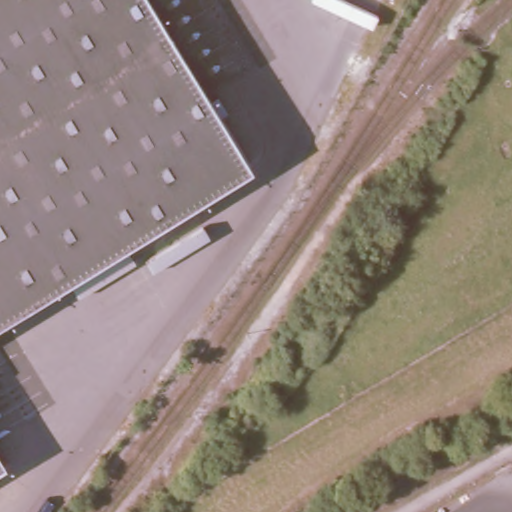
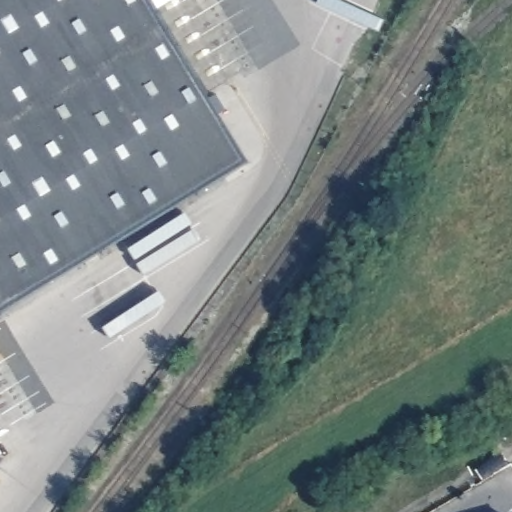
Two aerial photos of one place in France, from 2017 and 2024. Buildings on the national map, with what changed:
unchanged [(0,317),(0,0),(155,0),(254,160),(0,317)]
unchanged [(503,512),(498,512),(502,510),(503,512)]

